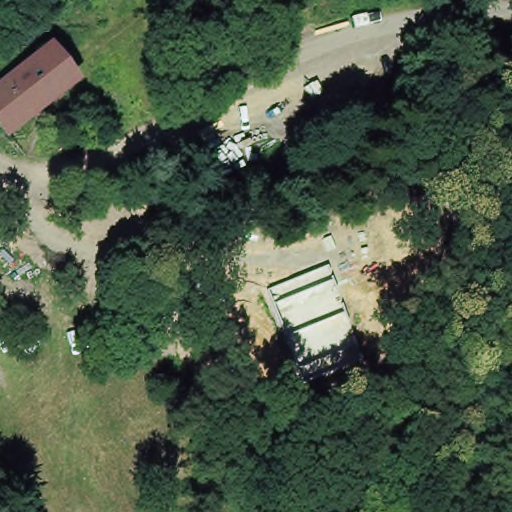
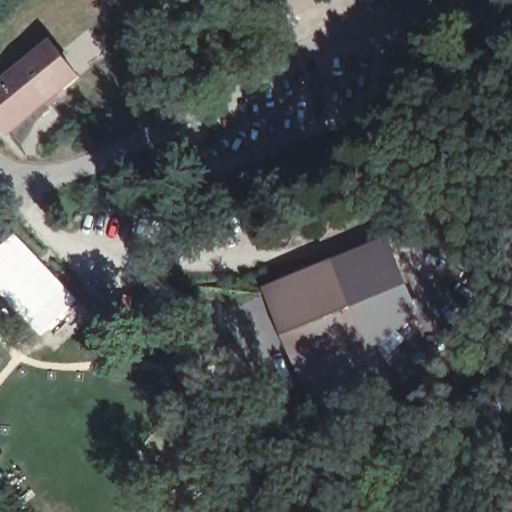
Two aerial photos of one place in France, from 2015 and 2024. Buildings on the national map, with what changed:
unchanged [(0,82),(52,43),(75,74),(3,128),(0,124),(0,82)]
new [(78,301),(41,336),(0,294),(0,249),(16,236),(78,301)]
new [(411,316),(298,366),(268,286),(382,239),(411,316)]

